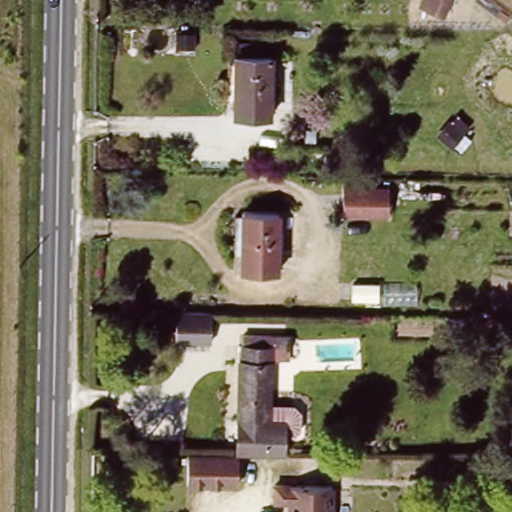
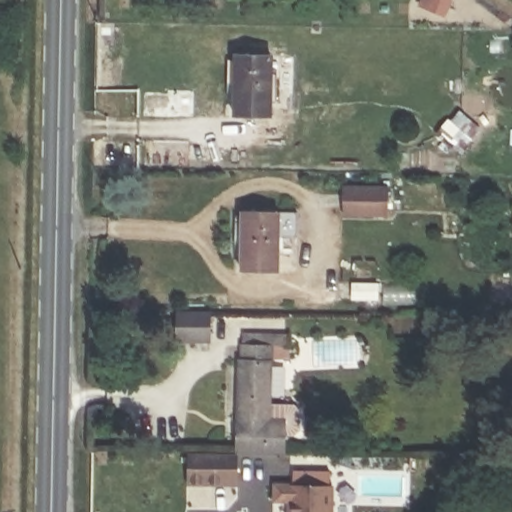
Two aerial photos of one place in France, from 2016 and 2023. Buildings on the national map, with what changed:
unchanged [(438,3),(439,0),(462,0),(459,10),(438,3)]
unchanged [(267,117),(229,116),(230,55),(268,56),(267,117)]
unchanged [(387,184),(386,211),(345,211),(345,182),(387,184)]
unchanged [(277,272),(240,271),(240,209),(278,210),(277,272)]
unchanged [(382,294),(352,293),(352,275),(383,275),(382,294)]
unchanged [(208,307),(208,338),(178,338),(177,306),(208,307)]
unchanged [(300,428),(283,429),(283,453),(234,452),(236,357),(243,357),(243,340),(290,341),(290,357),(273,357),(272,402),(299,401),(300,428)]
unchanged [(233,452),(236,480),(183,482),(184,452),(233,452)]
unchanged [(338,512),(295,512),(295,499),(292,499),(292,482),(338,483),(338,512)]

